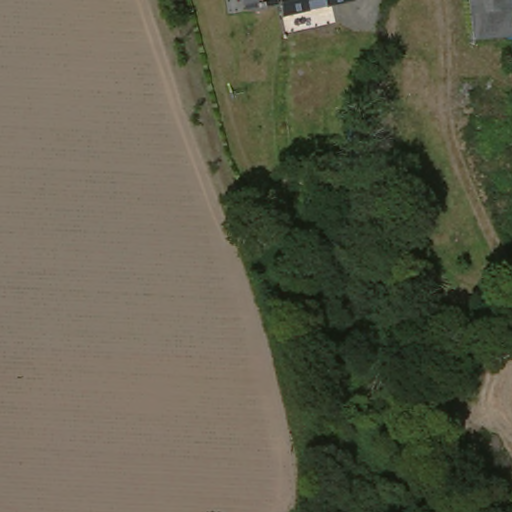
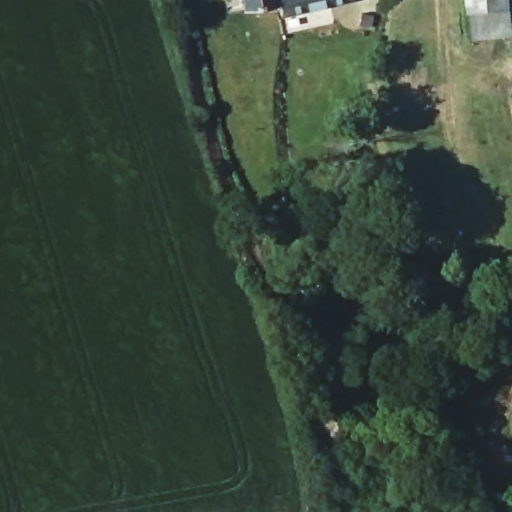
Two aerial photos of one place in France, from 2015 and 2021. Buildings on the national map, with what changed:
unchanged [(277,0),(279,6),(248,12),(245,0),(277,0)]
unchanged [(285,16),(283,5),(282,0),(357,0),(358,2),(285,16)]
unchanged [(475,43),(469,0),(512,0),(512,38),(475,43)]

